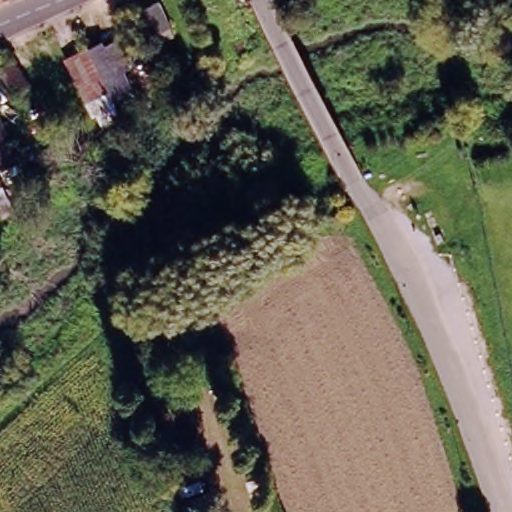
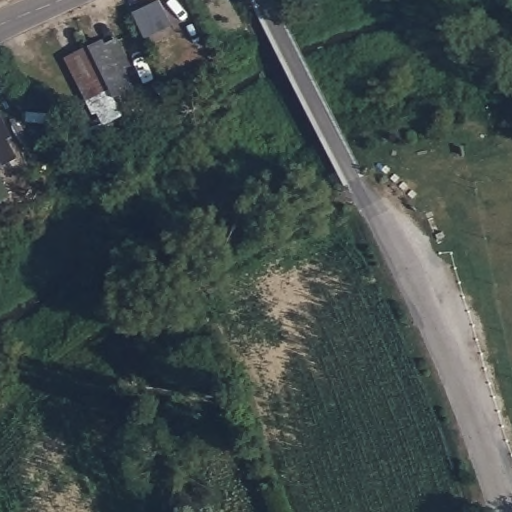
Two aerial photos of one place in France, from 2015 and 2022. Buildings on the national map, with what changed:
unchanged [(3,0),(0,1),(0,0),(3,0)]
unchanged [(157,0),(167,21),(144,32),(131,7),(146,0),(157,0)]
unchanged [(90,96),(82,84),(78,87),(60,61),(65,59),(84,45),(96,37),(100,41),(110,35),(128,63),(106,79),(110,84),(90,96)]
unchanged [(10,56),(22,79),(8,87),(0,73),(0,61),(10,56)]
unchanged [(3,135),(0,136),(0,129),(3,135)]
unchanged [(5,148),(0,150),(0,139),(5,148)]
unchanged [(202,507),(192,512),(189,512),(178,486),(192,481),(202,507)]

